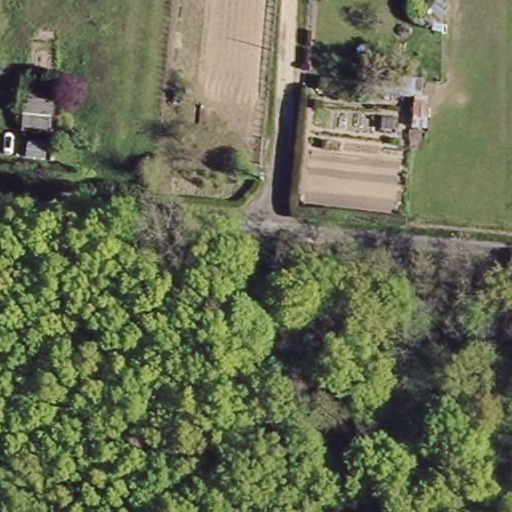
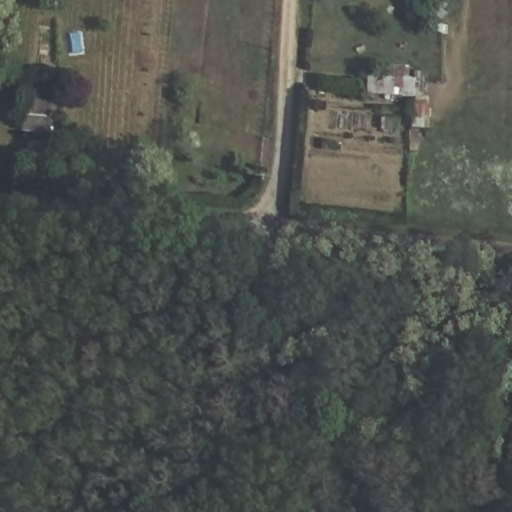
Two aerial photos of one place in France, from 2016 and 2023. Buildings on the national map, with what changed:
unchanged [(20,137),(23,106),(25,94),(51,96),(50,108),(47,140),(20,137)]

